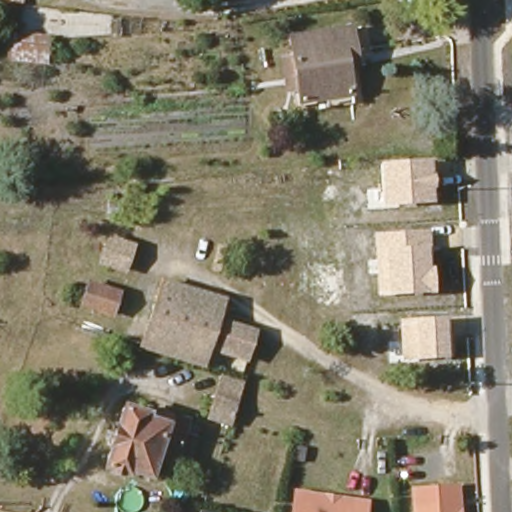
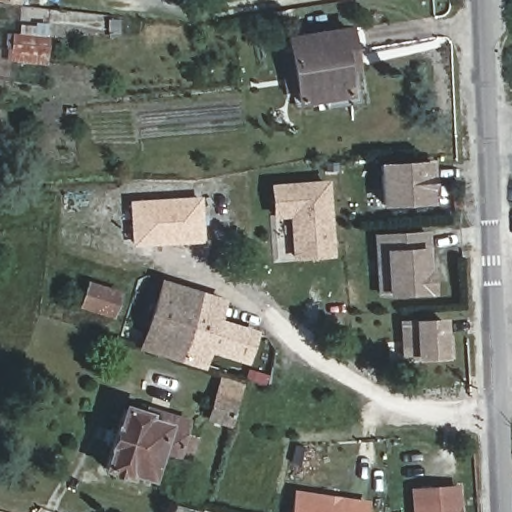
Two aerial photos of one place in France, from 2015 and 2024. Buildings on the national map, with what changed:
unchanged [(294,33),(355,23),(358,47),(361,62),(352,64),(356,89),(304,98),(302,83),(293,85),(288,52),(297,51),(294,33)]
unchanged [(46,63),(12,59),(15,34),(47,37),(46,63)]
unchanged [(433,202),(381,205),(378,161),(432,158),(433,202)]
new [(328,179),(334,257),(292,260),(288,217),(272,219),(270,183),(328,179)]
new [(201,196),(204,242),(132,245),(128,200),(201,196)]
unchanged [(432,293),(378,295),(375,232),(428,228),(432,293)]
unchanged [(127,264),(125,263),(111,257),(107,255),(110,239),(132,247),(127,264)]
unchanged [(230,296),(225,315),(260,328),(249,359),(217,348),(209,364),(141,343),(163,274),(230,296)]
unchanged [(120,286),(114,312),(81,304),(89,275),(120,286)]
unchanged [(447,359),(400,360),(397,320),(446,318),(447,359)]
unchanged [(241,396),(234,422),(209,414),(219,389),(241,396)]
unchanged [(121,427),(127,408),(132,395),(152,403),(151,409),(191,424),(186,438),(177,462),(158,455),(149,480),(132,473),(128,472),(127,475),(106,467),(109,459),(121,427)]
unchanged [(460,512),(417,512),(416,492),(459,489),(460,512)]
unchanged [(292,498),(301,498),(365,497),(365,512),(293,512),(292,498)]

